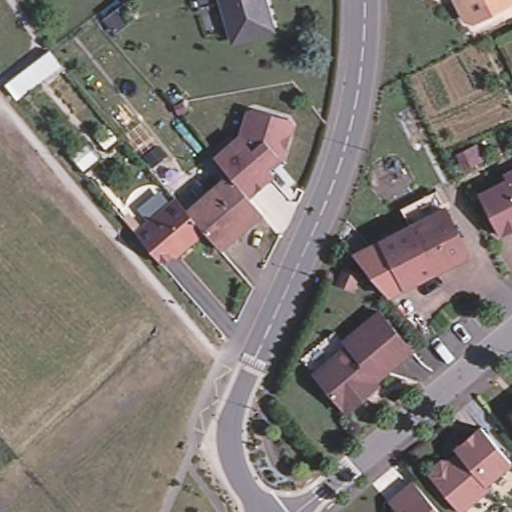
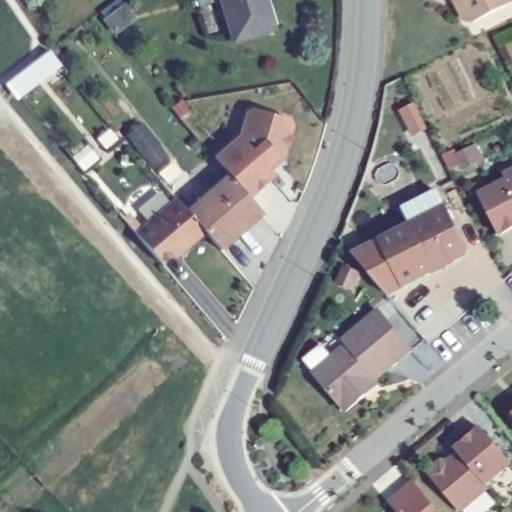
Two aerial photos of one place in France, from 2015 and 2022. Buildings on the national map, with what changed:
unchanged [(198,3),(197,0),(208,0),(198,3)]
unchanged [(268,25),(230,36),(221,0),(262,0),(268,25)]
unchanged [(474,19),(464,16),(459,5),(461,0),(512,0),(474,19)]
unchanged [(232,181),(226,175),(211,159),(236,134),(245,110),(251,106),(286,114),(290,120),(278,152),(275,152),(264,163),(271,170),(246,195),(232,181)]
unchanged [(147,121),(155,130),(142,142),(134,133),(147,121)]
unchanged [(480,190),(507,176),(505,171),(512,167),(512,226),(500,232),(480,190)]
unchanged [(226,175),(232,181),(246,195),(250,200),(260,210),(260,211),(219,251),(209,240),(203,233),(194,223),(186,214),(226,175)]
unchanged [(470,262),(459,267),(448,263),(437,269),(434,280),(409,292),(391,258),(385,243),(414,229),(405,210),(441,193),(450,211),(471,255),(470,262)]
unchanged [(172,200),(176,204),(186,214),(194,223),(203,233),(181,255),(178,252),(162,267),(153,258),(135,237),(172,200)]
unchanged [(369,393),(351,410),(317,370),(351,342),(347,338),(384,308),(416,348),(379,377),(382,383),(369,393)]
unchanged [(456,462),(465,455),(462,451),(488,430),(512,460),(512,470),(492,486),(495,491),(469,512),(465,512),(437,480),(437,471),(449,461),(456,462)]
unchanged [(419,482),(443,512),(403,512),(395,502),(419,482)]

